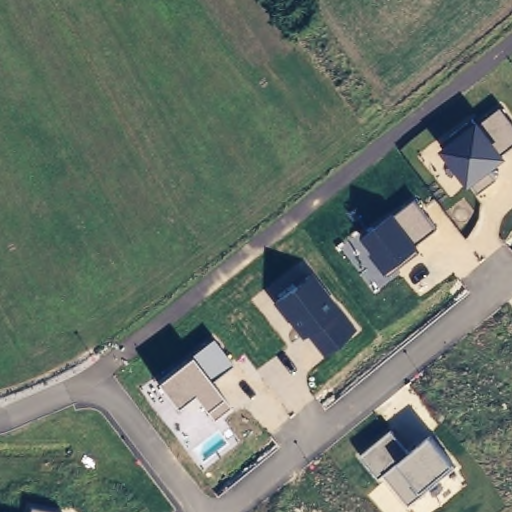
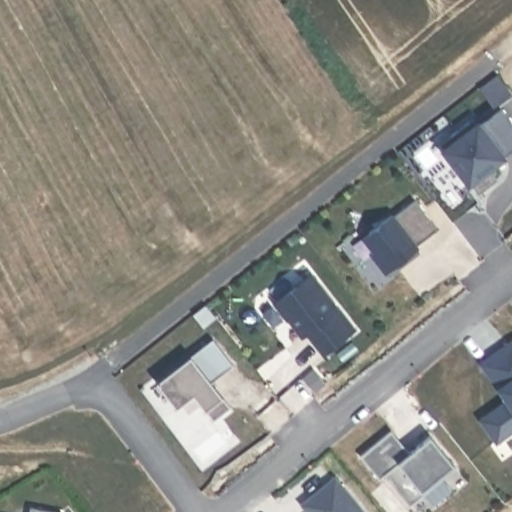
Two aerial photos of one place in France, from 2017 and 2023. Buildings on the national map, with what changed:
unchanged [(503,155),(506,160),(491,170),(497,179),(479,192),(472,183),(468,186),(440,150),(475,120),(479,125),(500,109),(512,124),(512,148),(503,155)]
unchanged [(435,231),(416,244),(419,249),(384,274),(369,254),(372,252),(363,238),(394,215),(412,202),(418,198),(439,229),(435,231)]
unchanged [(324,355),(307,333),(301,337),(274,303),(311,273),(355,329),(324,355)]
unchanged [(214,418),(205,409),(193,394),(176,406),(158,381),(191,356),(213,339),(233,365),(210,381),(223,397),(230,407),(214,418)]
new [(479,418),(505,399),(498,387),(479,362),(512,339),(512,429),(494,442),(479,418)]
unchanged [(424,490),(409,503),(382,472),(378,476),(361,456),(393,429),(412,450),(432,435),(455,463),(424,490)]
new [(336,475),(366,512),(308,512),(301,503),(336,475)]
unchanged [(55,512),(29,512),(31,506),(55,512)]

